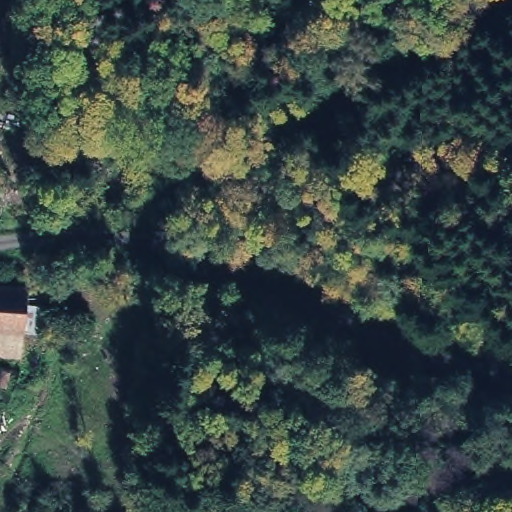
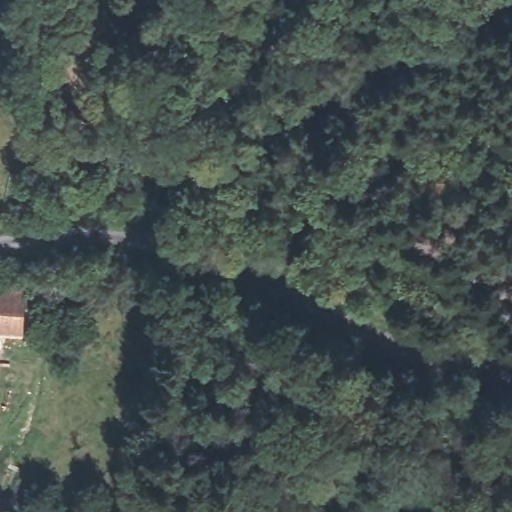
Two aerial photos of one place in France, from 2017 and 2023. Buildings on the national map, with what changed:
unchanged [(16,336),(0,334),(0,287),(22,290),(16,336)]

